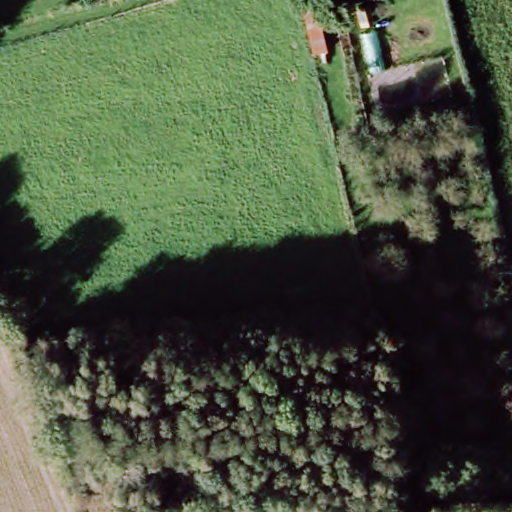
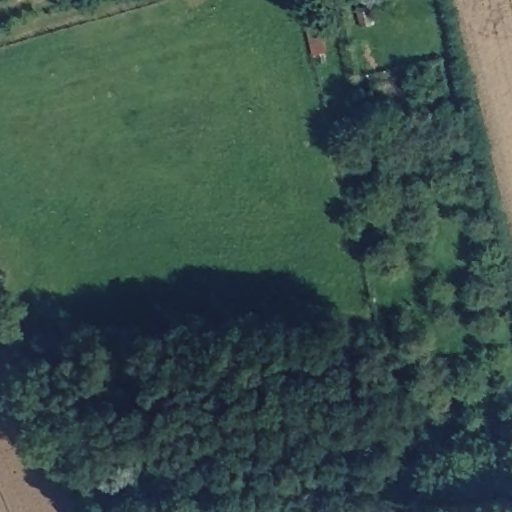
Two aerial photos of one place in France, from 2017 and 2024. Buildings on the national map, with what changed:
unchanged [(317,0),(327,53),(307,56),(295,0),(317,0)]

